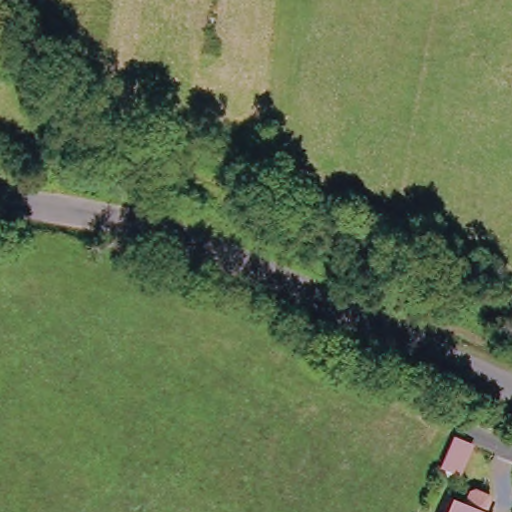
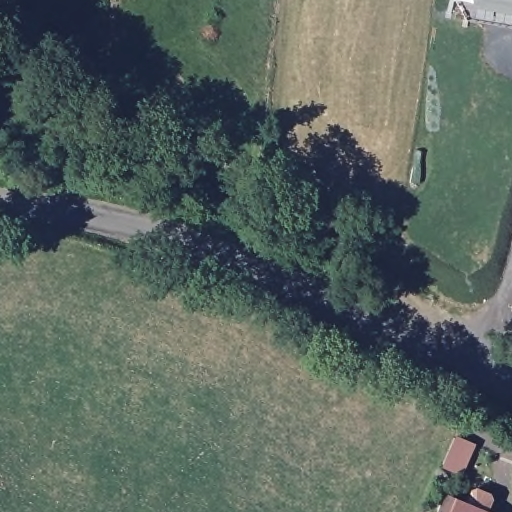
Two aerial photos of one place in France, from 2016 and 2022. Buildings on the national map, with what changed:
new [(512,9),(512,28),(466,20),(456,0),(475,0),(474,3),(512,9)]
new [(474,3),(475,0),(512,0),(512,9),(474,3)]
unchanged [(454,507),(465,512),(452,512),(454,507)]

